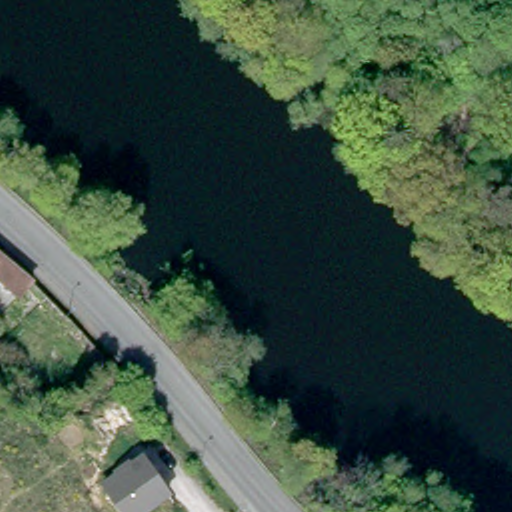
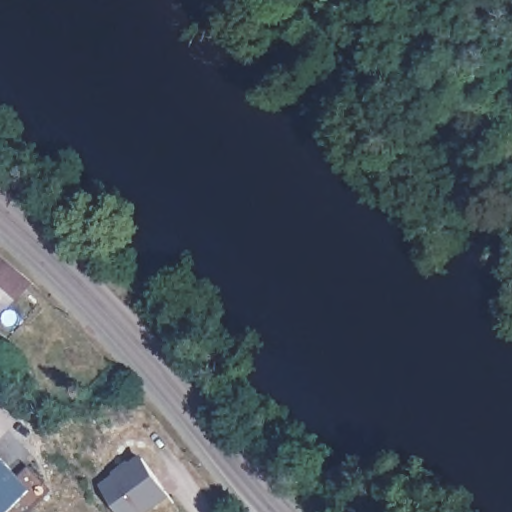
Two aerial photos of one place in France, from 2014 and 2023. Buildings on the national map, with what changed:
unchanged [(0,252),(1,252),(30,282),(19,296),(0,281),(0,252)]
new [(0,512),(0,452),(34,487),(10,512),(0,512)]
unchanged [(122,512),(102,483),(142,454),(170,495),(146,512),(122,512)]

